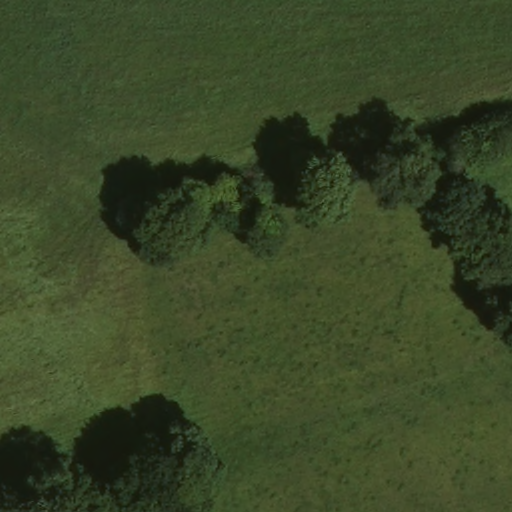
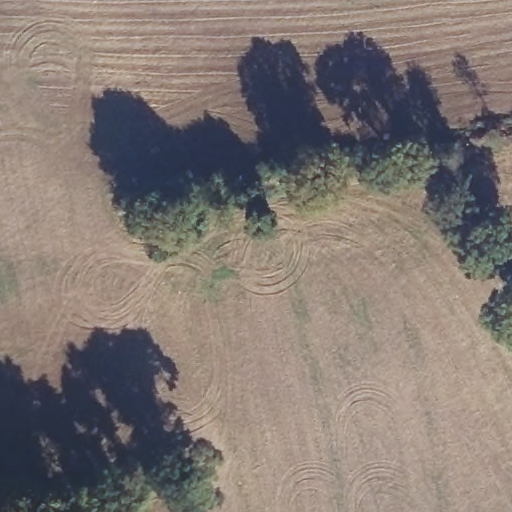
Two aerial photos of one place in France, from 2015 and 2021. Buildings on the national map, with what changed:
[]

